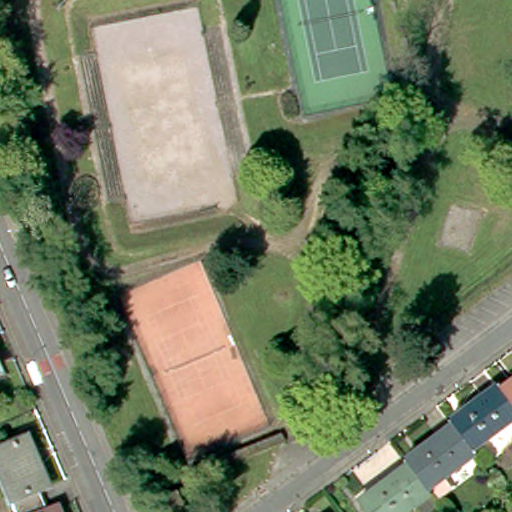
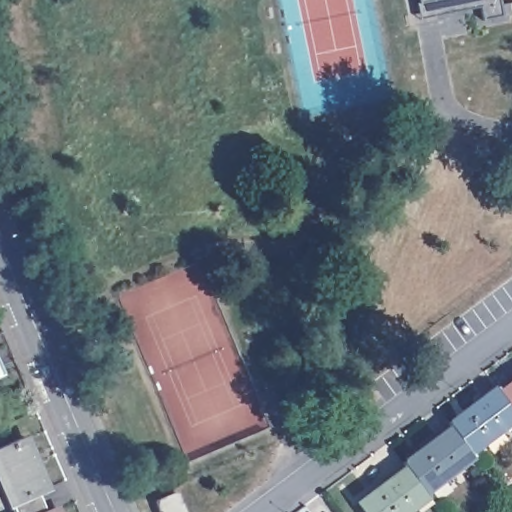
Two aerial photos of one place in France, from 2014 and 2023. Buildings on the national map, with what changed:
new [(502,15),(482,18),(480,5),(420,15),(417,0),(500,0),(502,15)]
unchanged [(512,379),(512,402),(500,387),(512,379)]
unchanged [(512,402),(512,420),(472,448),(453,422),(450,418),(498,383),(500,387),(512,402)]
unchanged [(427,487),(408,462),(405,457),(453,422),(472,448),(475,452),(427,487)]
unchanged [(7,511),(0,493),(0,445),(19,436),(39,484),(29,488),(34,499),(7,511)]
unchanged [(372,512),(360,497),(408,462),(427,487),(431,493),(403,512),(372,512)]
unchanged [(166,512),(163,505),(183,496),(190,512),(166,512)]
unchanged [(34,499),(39,511),(50,506),(52,512),(8,512),(7,511),(34,499)]

